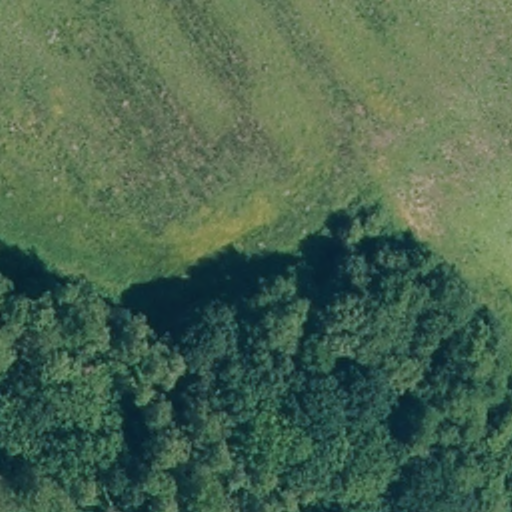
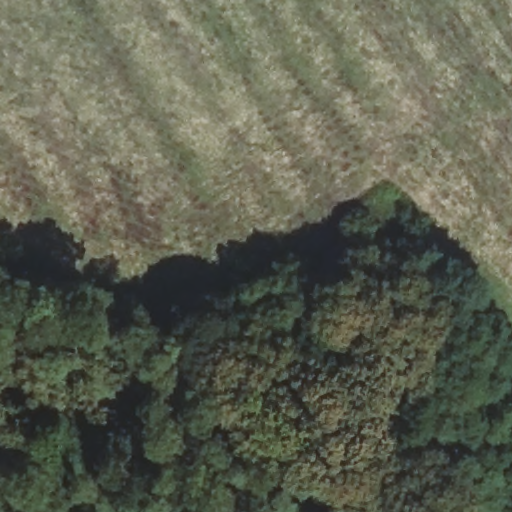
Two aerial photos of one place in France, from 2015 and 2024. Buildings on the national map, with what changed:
[]

